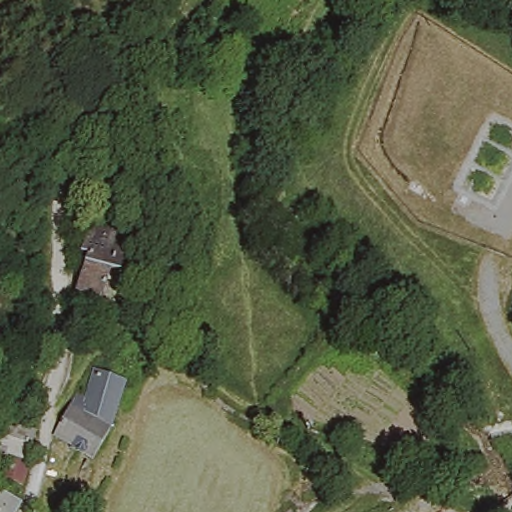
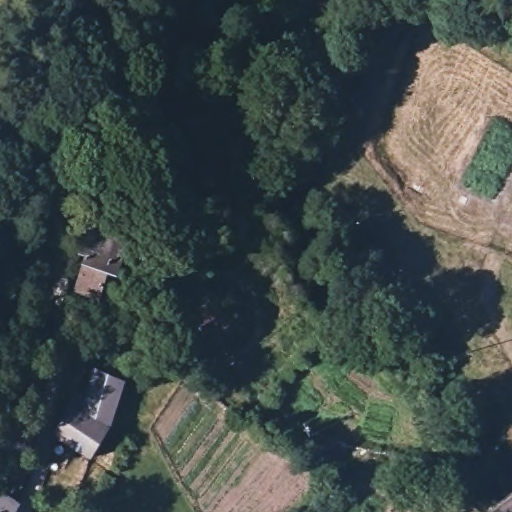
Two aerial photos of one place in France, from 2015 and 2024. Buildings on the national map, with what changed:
unchanged [(108,298),(64,287),(73,254),(115,266),(108,298)]
unchanged [(114,355),(103,346),(108,339),(128,323),(138,335),(114,355)]
unchanged [(109,434),(93,461),(55,439),(77,401),(88,403),(95,371),(113,380),(123,386),(109,434)]
unchanged [(35,435),(27,465),(0,453),(0,423),(35,435)]
unchanged [(19,488),(0,484),(0,474),(3,460),(23,465),(19,488)]
unchanged [(14,499),(6,512),(0,512),(0,489),(14,499)]

